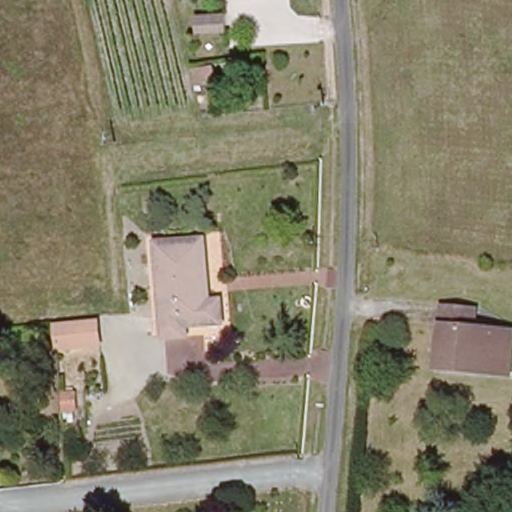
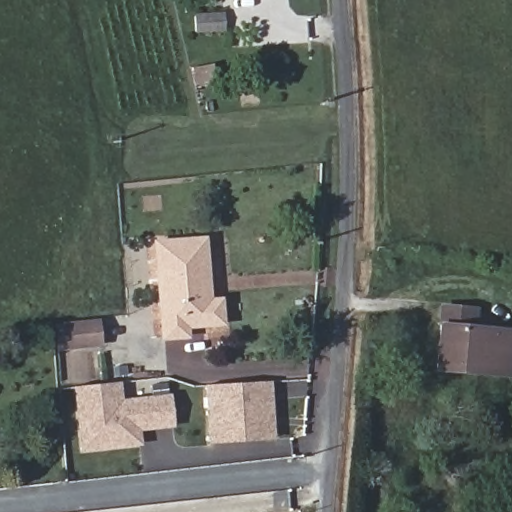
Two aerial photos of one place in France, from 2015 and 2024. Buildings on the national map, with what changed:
unchanged [(224,31),(196,32),(193,12),(224,10),(224,31)]
unchanged [(207,240),(212,305),(225,303),(226,325),(188,328),(189,337),(165,339),(157,245),(207,240)]
unchanged [(439,366),(446,309),(480,312),(478,325),(512,329),(512,357),(511,365),(510,374),(463,369),(439,366)]
unchanged [(96,342),(60,346),(58,327),(94,323),(96,342)]
new [(207,444),(204,385),(272,381),(274,440),(207,444)]
new [(141,431),(142,445),(78,452),(72,386),(121,382),(122,399),(170,394),(174,427),(141,431)]

